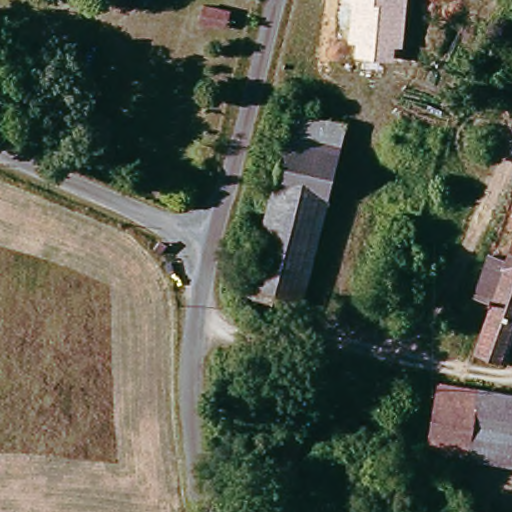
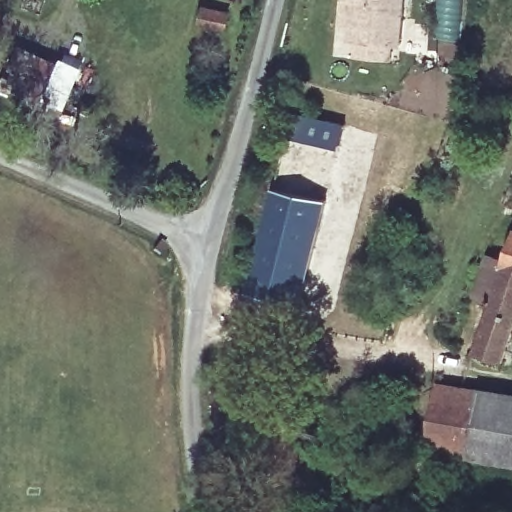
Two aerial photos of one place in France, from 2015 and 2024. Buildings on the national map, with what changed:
unchanged [(395,46),(394,60),(356,57),(357,41),(349,40),(353,0),(407,0),(403,46),(395,46)]
new [(437,15),(439,0),(463,0),(459,41),(440,40),(443,15),(437,15)]
unchanged [(229,12),(225,33),(195,26),(200,4),(229,12)]
unchanged [(293,117),(343,131),(337,154),(286,140),(293,117)]
unchanged [(245,292),(286,140),(337,154),(295,307),(245,292)]
unchanged [(473,362),(512,246),(512,341),(501,372),(473,362)]
unchanged [(497,395),(486,461),(426,451),(437,388),(497,395)]
unchanged [(512,465),(486,461),(497,395),(512,397),(512,465)]
unchanged [(295,417),(269,508),(240,499),(268,409),(295,417)]
unchanged [(384,505),(396,456),(436,465),(426,512),(409,512),(384,505)]

